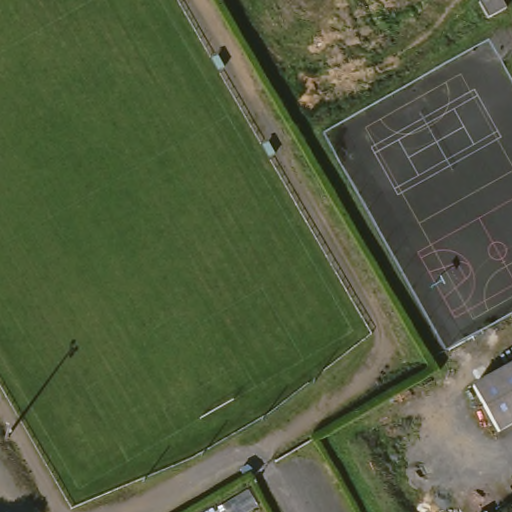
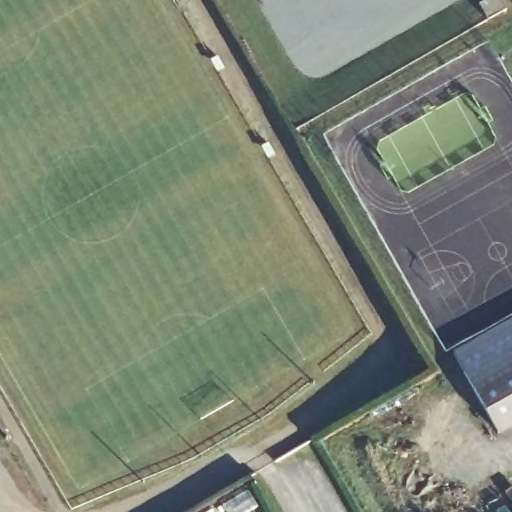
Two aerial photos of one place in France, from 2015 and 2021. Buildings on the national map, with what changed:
unchanged [(505,2),(512,15),(512,20),(496,29),(486,13),(505,2)]
new [(454,355),(512,322),(512,365),(474,386),(454,355)]
unchanged [(512,365),(512,424),(499,432),(474,386),(512,365)]

